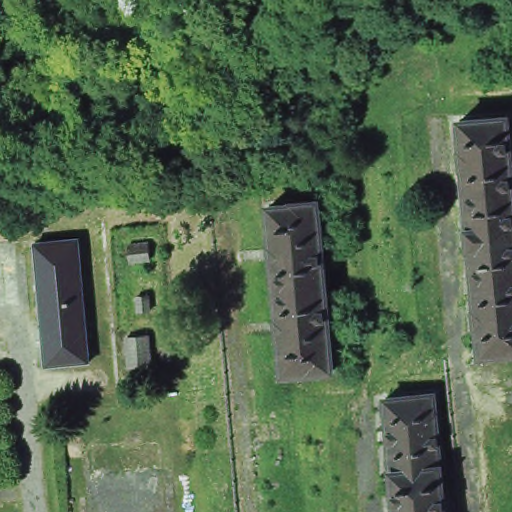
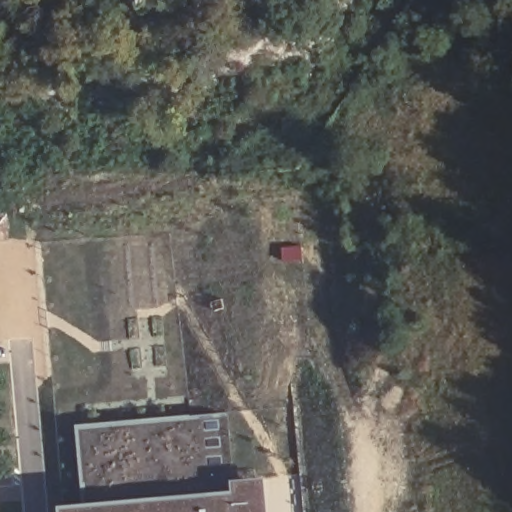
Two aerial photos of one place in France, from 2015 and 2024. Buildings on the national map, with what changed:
demolished [(512,151),(512,359),(481,362),(460,126),(510,122),(512,151)]
demolished [(283,376),(269,209),(317,204),(332,372),(283,376)]
demolished [(88,364),(44,368),(32,245),(76,241),(88,364)]
demolished [(147,337),(150,371),(124,372),(124,340),(147,337)]
demolished [(512,380),(512,409),(506,410),(505,380),(512,380)]
demolished [(444,512),(395,512),(384,395),(433,390),(444,512)]
new [(235,512),(52,512),(52,506),(75,501),(72,425),(227,411),(235,512)]
demolished [(492,434),(512,432),(512,479),(496,480),(492,434)]
demolished [(512,500),(512,512),(493,512),(492,501),(512,500)]

